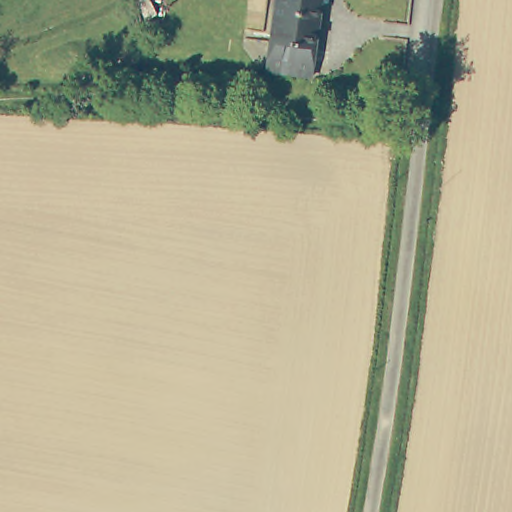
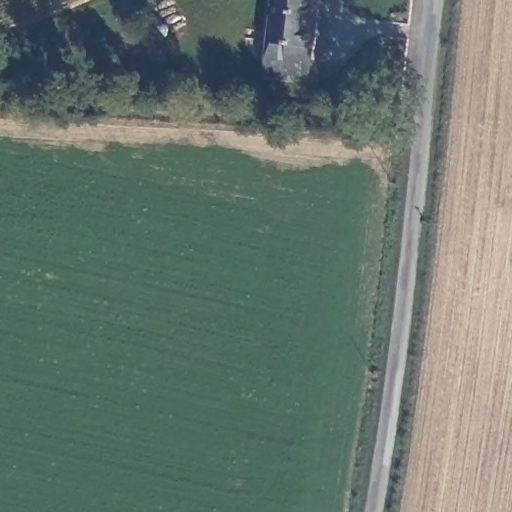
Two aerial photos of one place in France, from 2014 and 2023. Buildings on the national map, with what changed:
unchanged [(324,0),(317,50),(272,43),(278,0),(324,0)]
unchanged [(317,50),(313,79),(268,73),(272,43),(317,50)]

